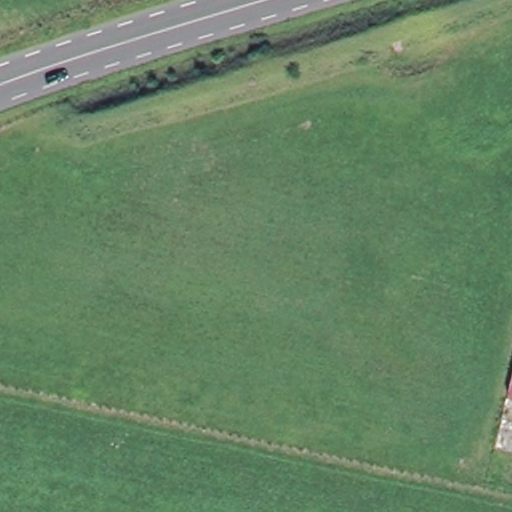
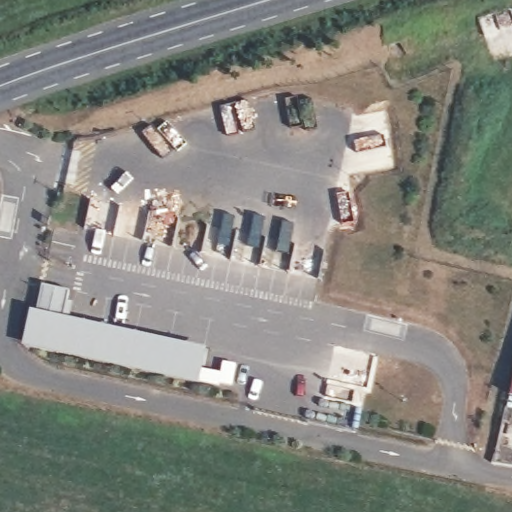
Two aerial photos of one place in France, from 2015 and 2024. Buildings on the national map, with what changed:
new [(69,290),(66,301),(71,303),(68,318),(204,347),(197,383),(21,345),(28,309),(34,310),(40,284),(69,290)]
unchanged [(512,376),(512,395),(507,393),(512,376)]

